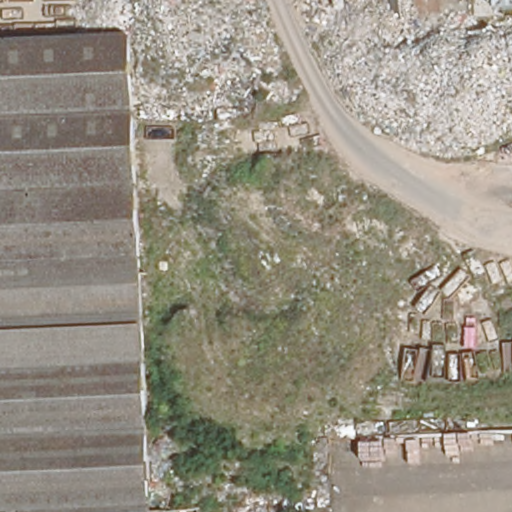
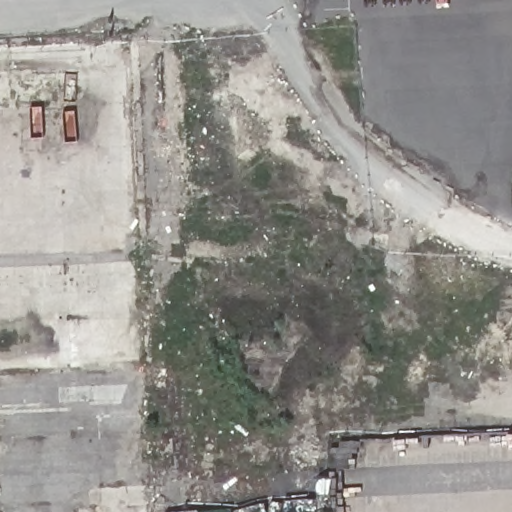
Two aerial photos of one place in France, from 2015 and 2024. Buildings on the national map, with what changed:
demolished [(138,363),(0,368),(0,43),(122,38),(138,363)]
demolished [(138,363),(146,512),(0,512),(0,368),(138,363)]

